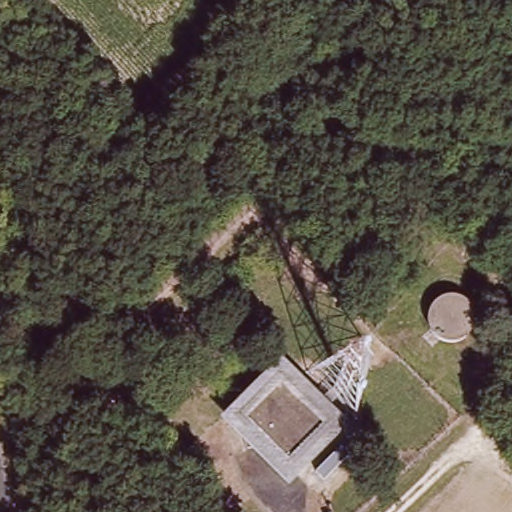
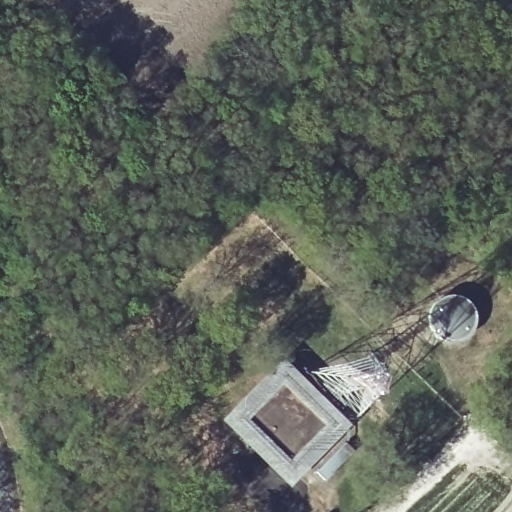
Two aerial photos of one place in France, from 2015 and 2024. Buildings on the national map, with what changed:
unchanged [(280,355),(349,422),(288,482),(219,417),(280,355)]

